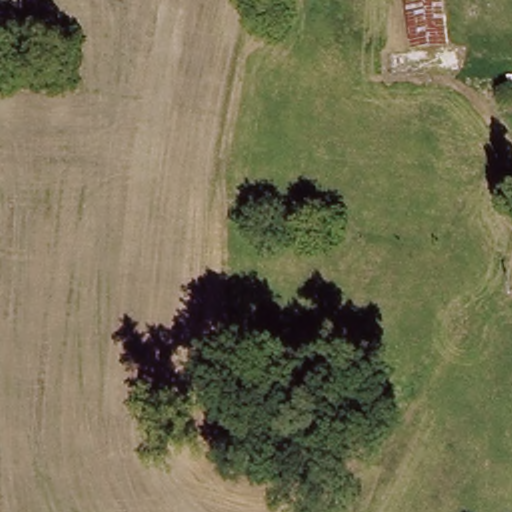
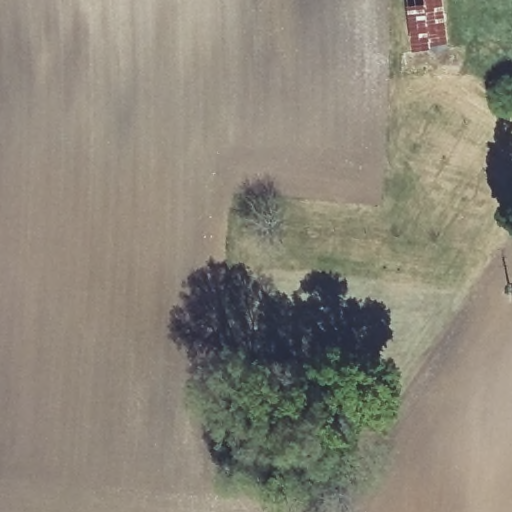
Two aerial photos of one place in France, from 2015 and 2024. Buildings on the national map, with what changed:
unchanged [(448,45),(412,49),(407,0),(443,0),(448,45)]

